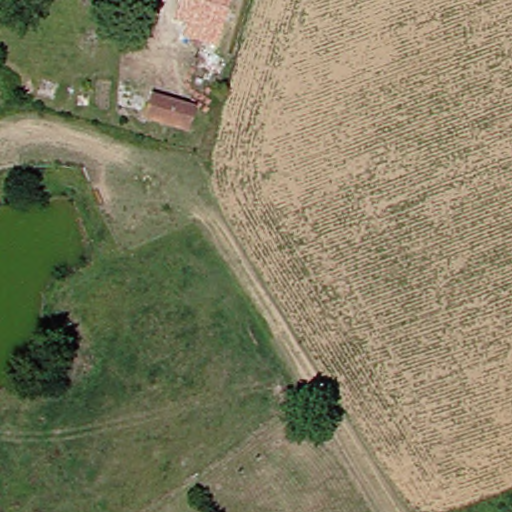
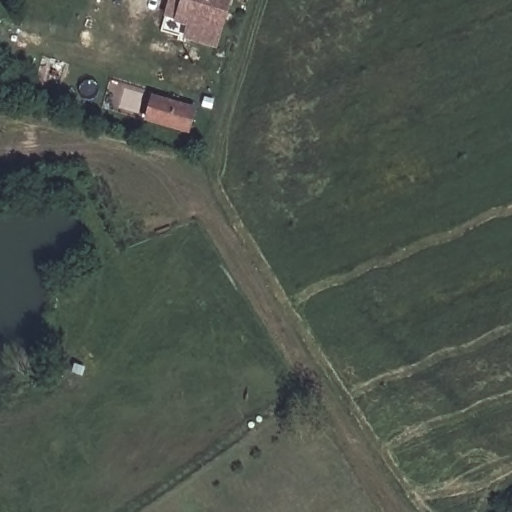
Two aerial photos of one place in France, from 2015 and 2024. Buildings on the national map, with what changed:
unchanged [(180,41),(184,29),(179,27),(171,25),(179,0),(224,0),(210,50),(180,41)]
unchanged [(57,84),(53,97),(38,92),(42,79),(57,84)]
unchanged [(187,114),(182,134),(142,122),(148,103),(187,114)]

